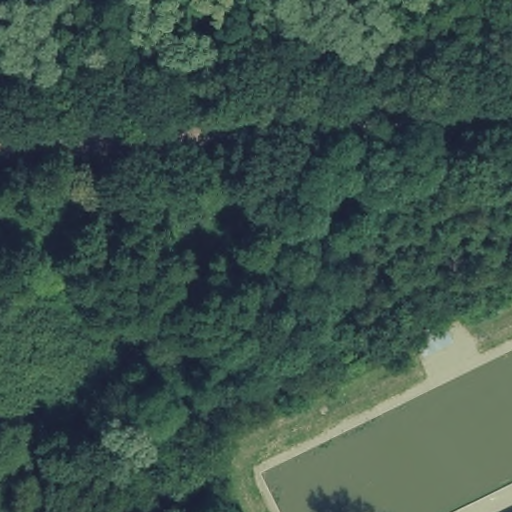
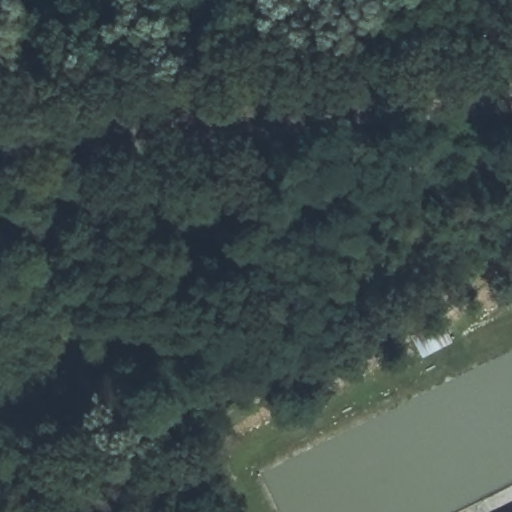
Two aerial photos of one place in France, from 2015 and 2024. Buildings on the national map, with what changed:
unchanged [(419,359),(409,338),(445,318),(454,341),(419,359)]

